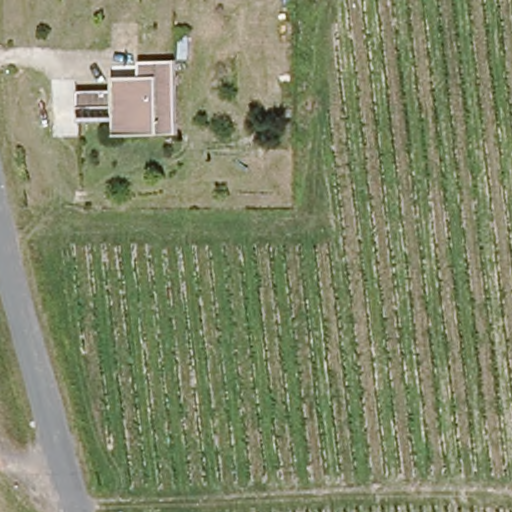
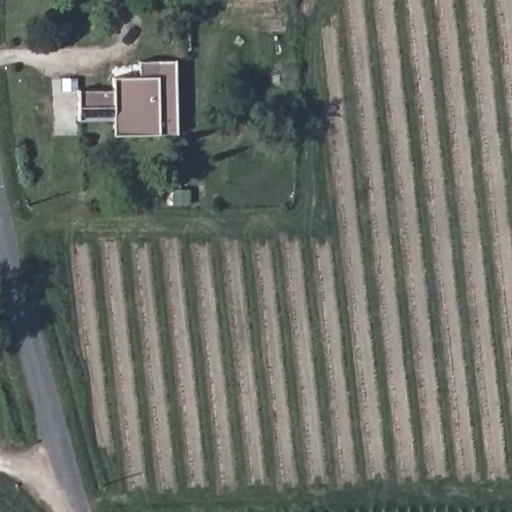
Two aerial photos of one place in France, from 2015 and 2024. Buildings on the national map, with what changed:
unchanged [(114,136),(113,121),(77,121),(77,108),(77,91),(78,91),(112,91),(112,78),(139,77),(139,62),(174,61),(177,118),(177,134),(114,136)]

